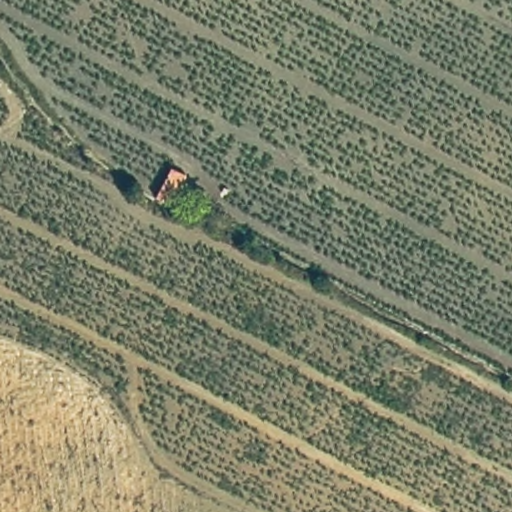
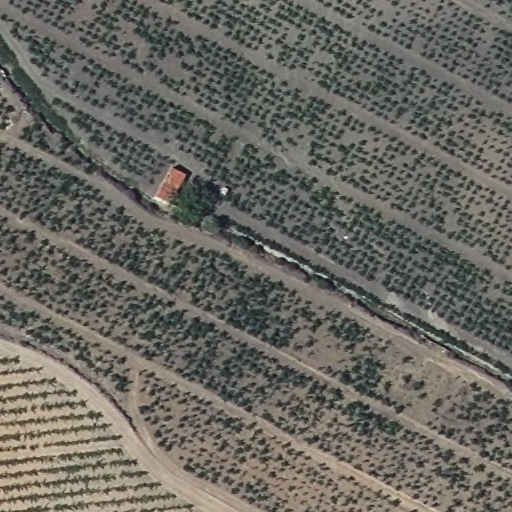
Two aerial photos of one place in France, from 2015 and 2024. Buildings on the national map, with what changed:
unchanged [(186,180),(173,209),(154,200),(168,170),(186,180)]

